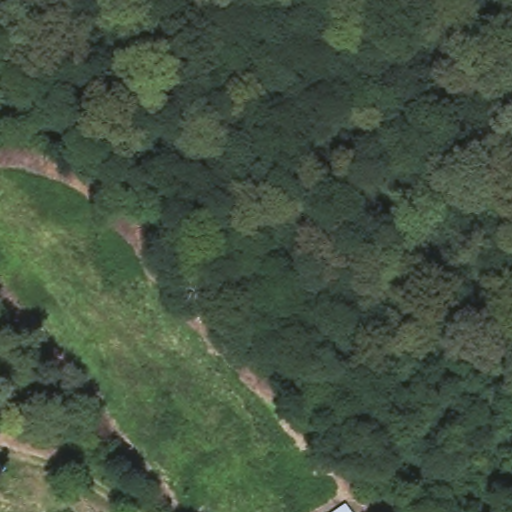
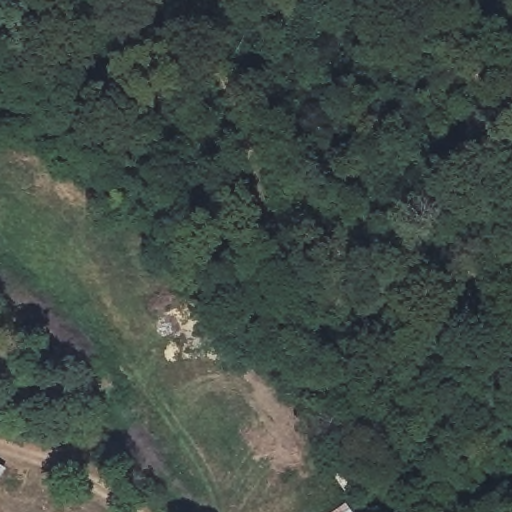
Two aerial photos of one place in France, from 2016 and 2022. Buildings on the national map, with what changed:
unchanged [(352,512),(334,512),(346,504),(352,512)]

